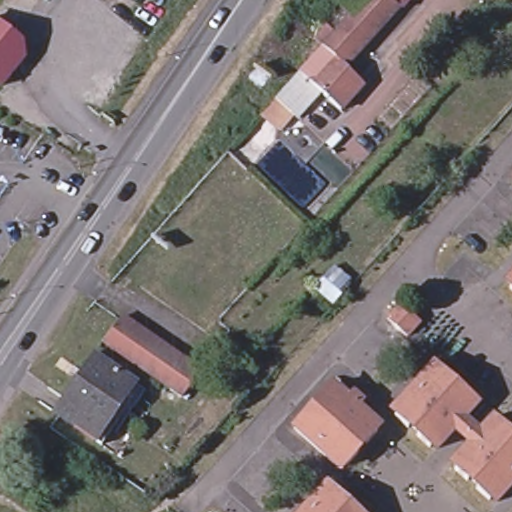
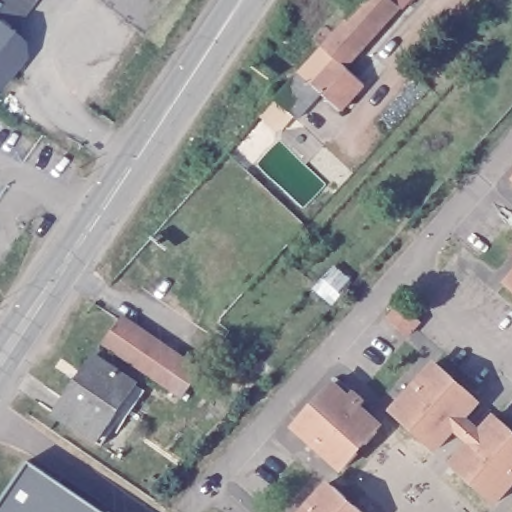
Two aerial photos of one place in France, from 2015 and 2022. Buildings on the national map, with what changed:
unchanged [(364,0),(400,0),(403,3),(345,67),(337,60),(322,47),(364,0)]
unchanged [(19,55),(0,79),(0,25),(17,39),(19,55)]
unchanged [(345,67),(363,85),(341,109),(322,92),(314,85),(337,60),(345,67)]
unchanged [(266,111),(276,99),(300,72),(314,85),(322,92),(297,119),(286,130),(266,111)]
unchanged [(507,285),(510,281),(505,276),(512,267),(512,289),(507,285)]
unchanged [(385,320),(397,306),(417,323),(404,337),(385,320)]
unchanged [(142,368),(123,354),(104,340),(116,322),(119,321),(122,319),(125,319),(130,319),(165,344),(182,355),(201,369),(182,395),(142,368)]
unchanged [(94,357),(100,361),(113,370),(134,383),(144,389),(133,407),(129,404),(102,444),(87,434),(66,421),(56,413),(77,381),(94,357)]
unchanged [(457,433),(439,453),(435,449),(432,452),(419,440),(421,437),(412,429),(410,432),(397,421),(400,418),(394,413),(434,366),(440,372),(442,369),(455,380),(453,383),(462,391),(465,389),(477,399),(475,402),(480,407),(461,428),(476,441),(495,420),(500,424),(502,421),(506,425),(512,430),(512,489),(499,505),(497,503),(493,499),(491,503),(479,492),(481,489),(480,488),(472,482),(470,484),(460,476),(457,473),(459,470),(454,466),(472,446),(457,433)]
unchanged [(295,425),(293,423),(304,411),(306,412),(314,403),(312,401),(324,388),(326,390),(329,387),(345,401),(349,396),(360,405),(356,411),(375,428),(372,432),(375,434),(364,447),(361,445),(352,453),(355,456),(345,468),(341,466),(337,470),(292,428),(295,425)]
new [(0,512),(0,507),(30,464),(101,512),(0,512)]
unchanged [(331,488),(333,485),(346,497),(344,500),(352,507),(355,505),(363,512),(300,512),(326,483),(331,488)]

